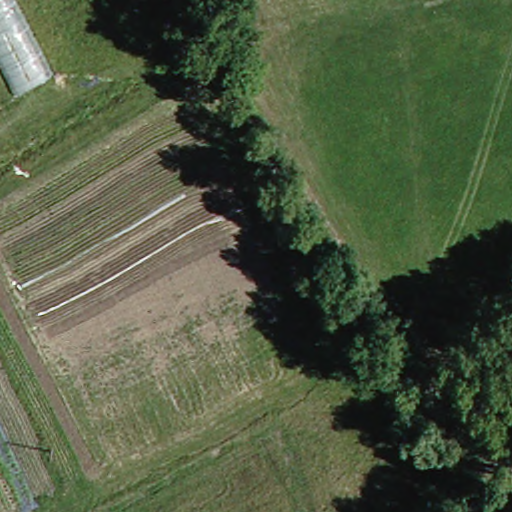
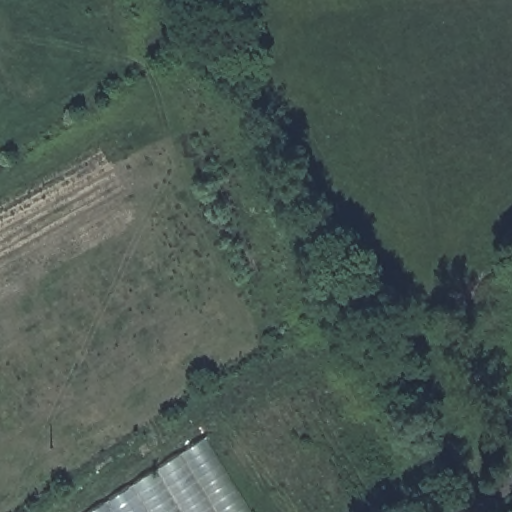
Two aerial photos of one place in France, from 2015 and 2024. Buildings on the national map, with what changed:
new [(206,437),(251,512),(91,512),(206,437)]

